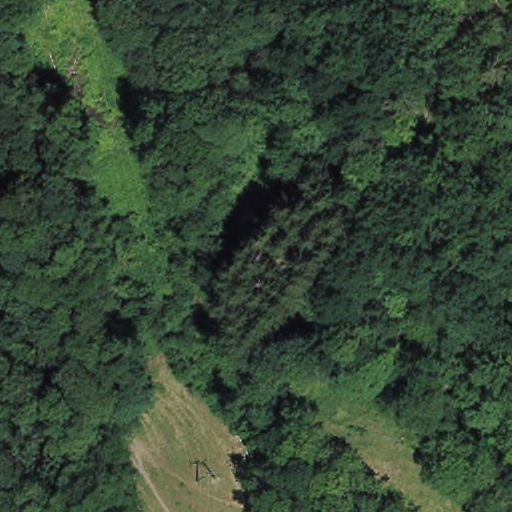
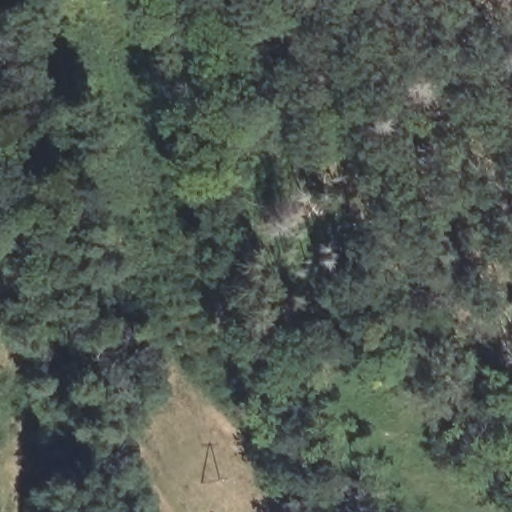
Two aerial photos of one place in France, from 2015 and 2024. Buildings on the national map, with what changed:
[]

